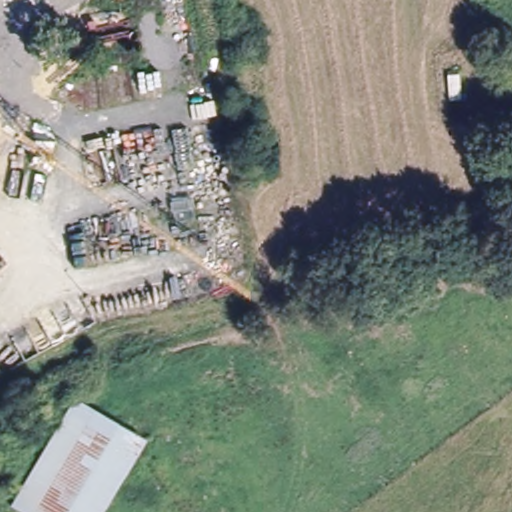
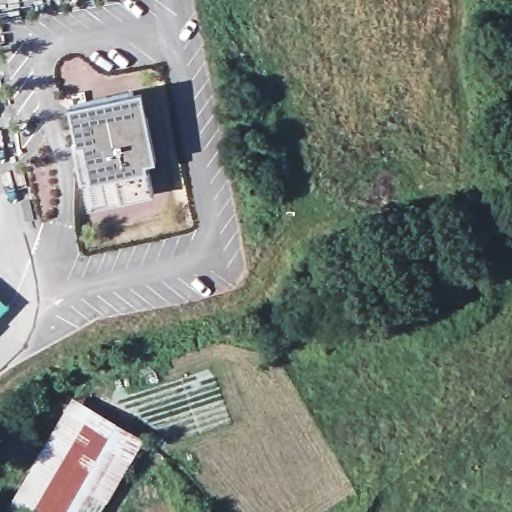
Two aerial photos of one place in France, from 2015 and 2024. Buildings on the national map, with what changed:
new [(122,199),(91,205),(85,180),(81,180),(73,141),(77,142),(70,104),(142,90),(155,157),(145,160),(147,167),(150,192),(122,199)]
new [(0,297),(8,305),(0,312),(0,297)]
unchanged [(100,512),(28,512),(9,500),(72,393),(141,436),(100,512)]

